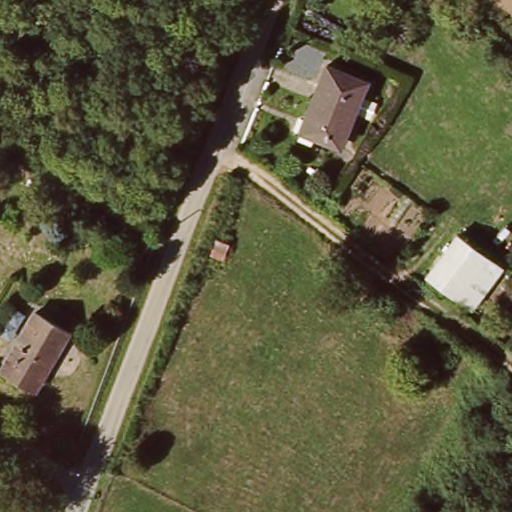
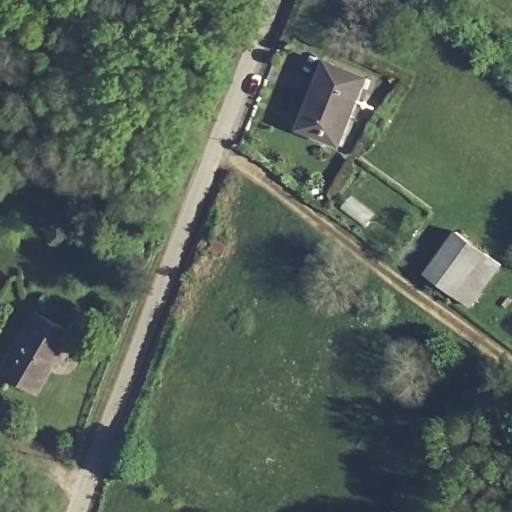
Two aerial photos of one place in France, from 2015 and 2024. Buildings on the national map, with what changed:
unchanged [(340,143),(300,127),(325,62),(365,77),(340,143)]
unchanged [(496,262),(473,302),(426,274),(450,234),(496,262)]
unchanged [(64,333),(33,389),(0,371),(28,315),(64,333)]

